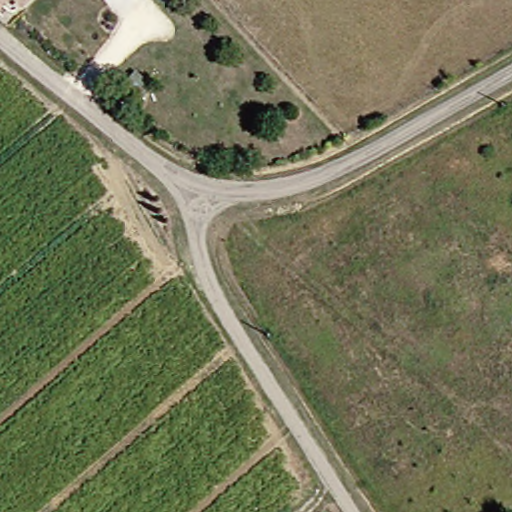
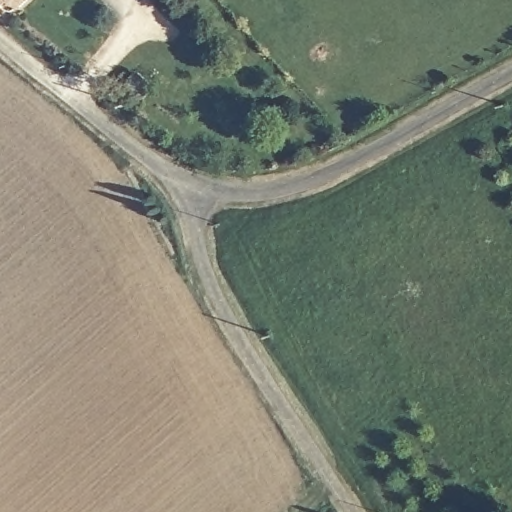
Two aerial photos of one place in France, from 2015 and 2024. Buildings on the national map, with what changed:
unchanged [(4,0),(17,0),(10,6),(4,0)]

